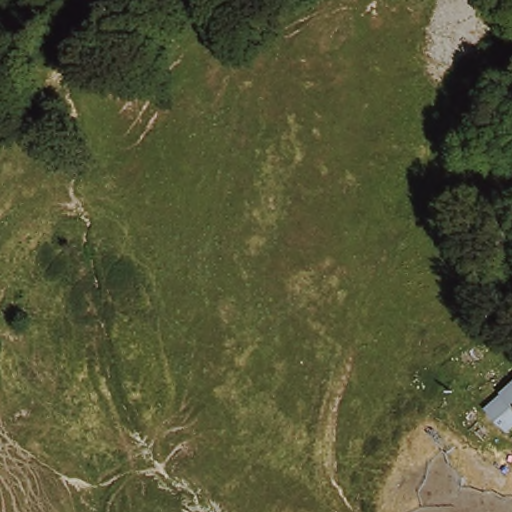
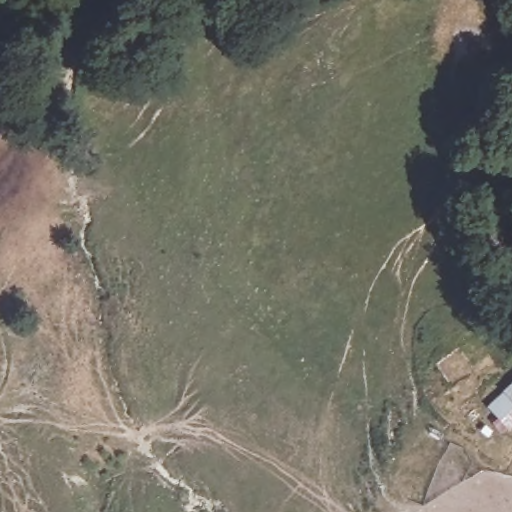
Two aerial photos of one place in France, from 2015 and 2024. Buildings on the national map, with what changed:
unchanged [(512,390),(512,430),(491,407),(512,390)]

